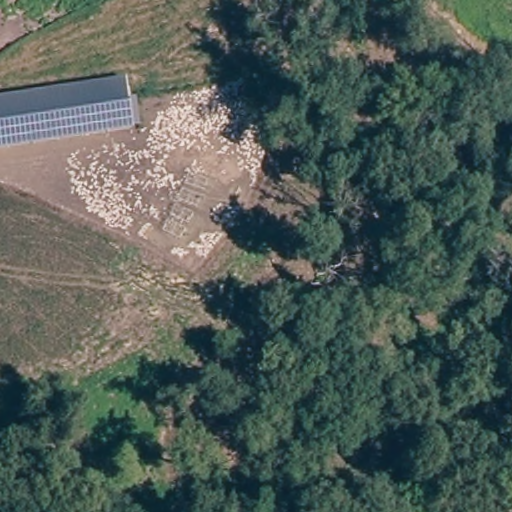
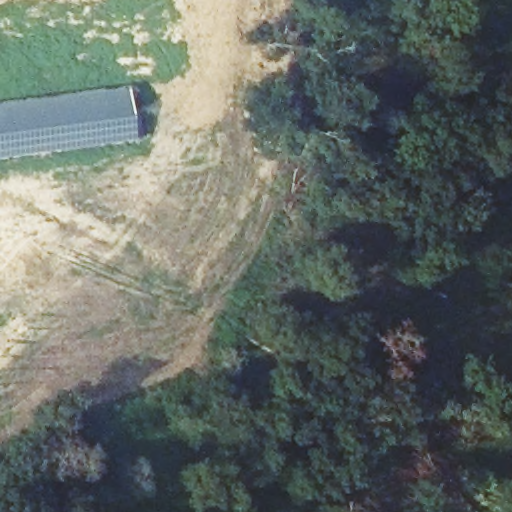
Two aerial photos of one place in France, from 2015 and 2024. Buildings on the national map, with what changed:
unchanged [(0,150),(0,103),(127,87),(133,133),(0,150)]

